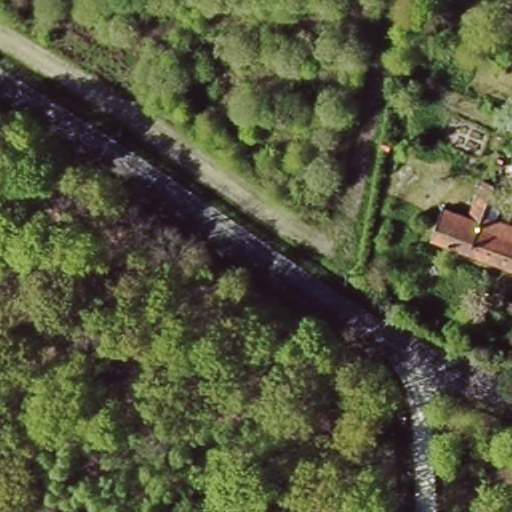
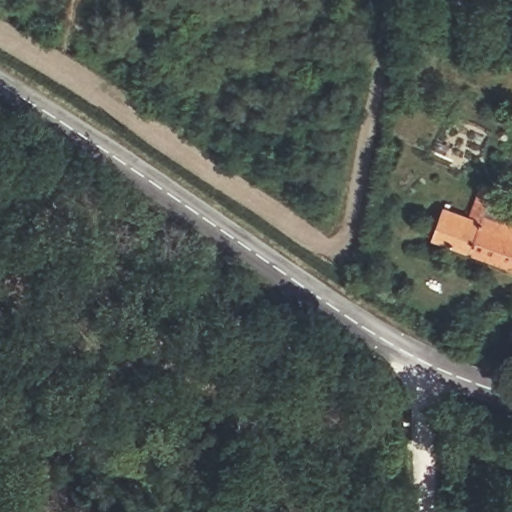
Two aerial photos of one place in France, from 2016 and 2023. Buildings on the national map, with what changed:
unchanged [(512,227),(512,267),(473,257),(428,245),(438,210),(464,214),(473,191),(489,196),(484,219),(512,227)]

